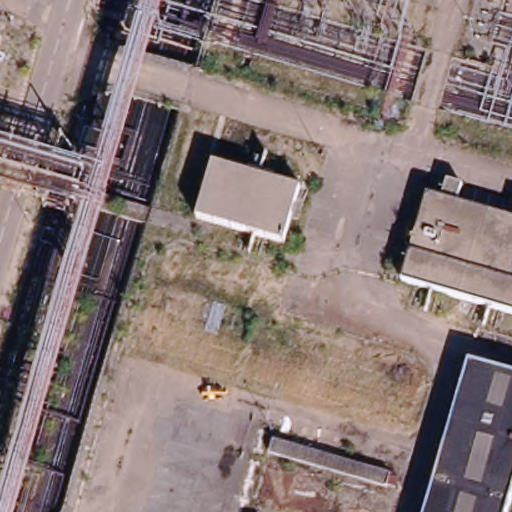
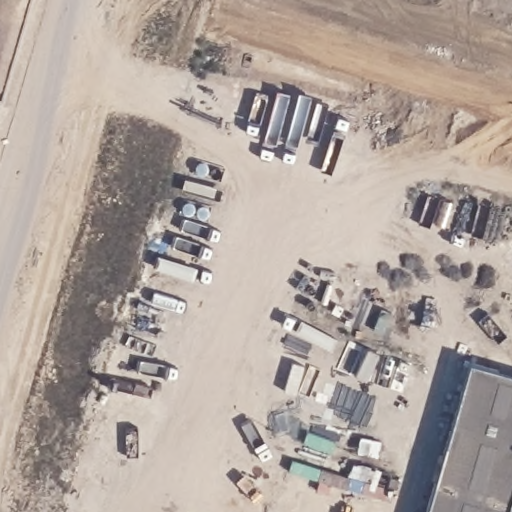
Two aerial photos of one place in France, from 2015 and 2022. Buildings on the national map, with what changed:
demolished [(272,0),(411,0),(401,30),(272,0)]
demolished [(294,189),(280,241),(195,217),(210,164),(294,189)]
demolished [(512,219),(512,310),(400,277),(424,195),(440,199),(455,203),(512,219)]
unchanged [(512,376),(512,501),(509,512),(423,512),(465,367),(512,376)]
demolished [(391,468),(385,483),(270,449),(275,435),(391,468)]

